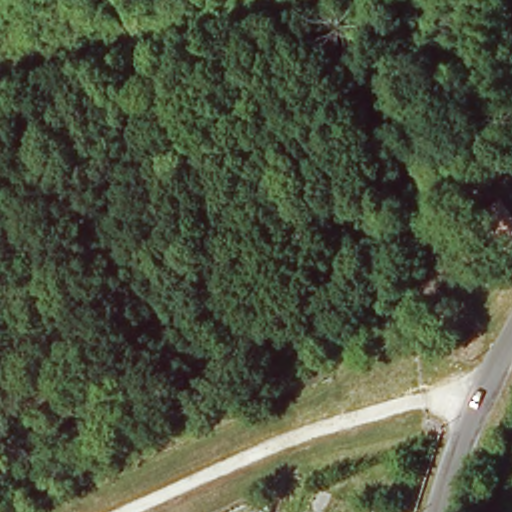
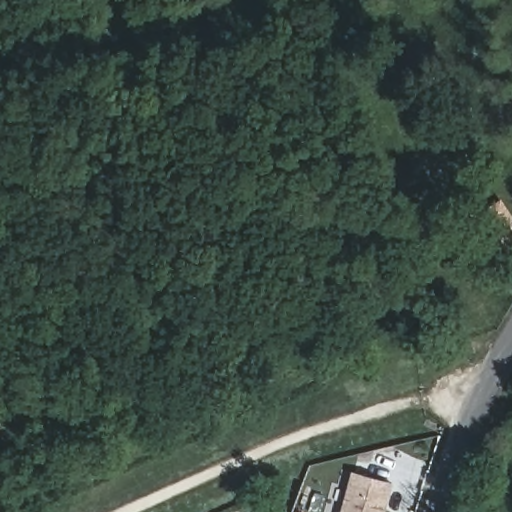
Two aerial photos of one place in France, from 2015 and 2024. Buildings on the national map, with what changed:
unchanged [(486,246),(470,215),(502,199),(512,216),(512,250),(496,259),(486,246)]
new [(386,512),(341,512),(352,471),(393,482),(386,512)]

